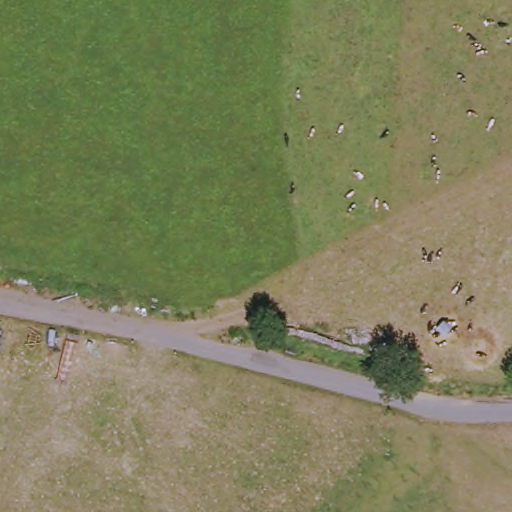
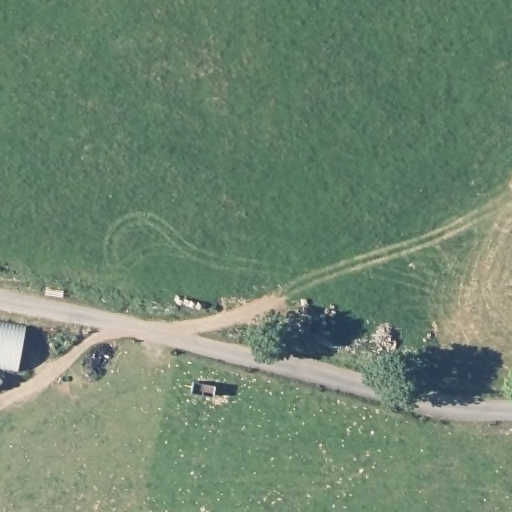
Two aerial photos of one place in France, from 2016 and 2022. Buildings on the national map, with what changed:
new [(25,326),(18,373),(0,369),(0,322),(25,326)]

